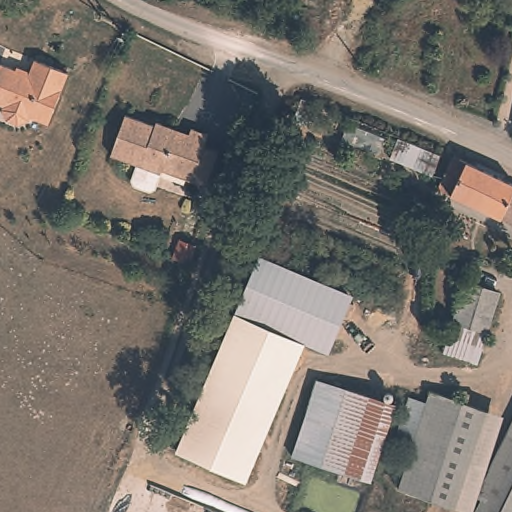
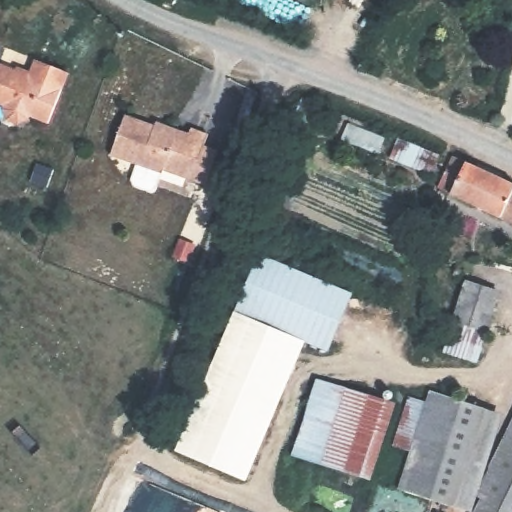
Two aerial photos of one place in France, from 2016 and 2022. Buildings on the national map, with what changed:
unchanged [(30,117),(28,121),(18,125),(8,121),(3,110),(4,107),(0,105),(0,64),(29,76),(35,60),(69,74),(48,124),(30,117)]
unchanged [(309,126),(294,119),(302,98),(318,104),(309,126)]
unchanged [(211,182),(197,177),(166,165),(165,169),(160,184),(155,186),(140,181),(137,176),(143,161),(115,151),(134,99),(164,110),(165,107),(197,119),(200,112),(218,119),(214,130),(228,135),(211,182)]
unchanged [(432,175),(390,159),(398,140),(440,156),(432,175)]
unchanged [(512,182),(512,221),(506,218),(443,189),(458,156),(480,167),(508,180),(512,182)]
unchanged [(188,264),(174,257),(181,241),(196,247),(188,264)]
unchanged [(329,351),(236,312),(260,256),(353,294),(329,351)]
unchanged [(444,347),(451,325),(466,278),(500,289),(485,336),(478,358),(444,347)]
unchanged [(246,481),(175,451),(236,312),(305,341),(246,481)]
unchanged [(368,480),(294,456),(318,381),(392,403),(368,480)]
unchanged [(398,490),(411,452),(394,446),(409,399),(426,405),(430,391),(486,410),(455,507),(398,490)]
unchanged [(512,425),(512,512),(469,512),(512,425)]

